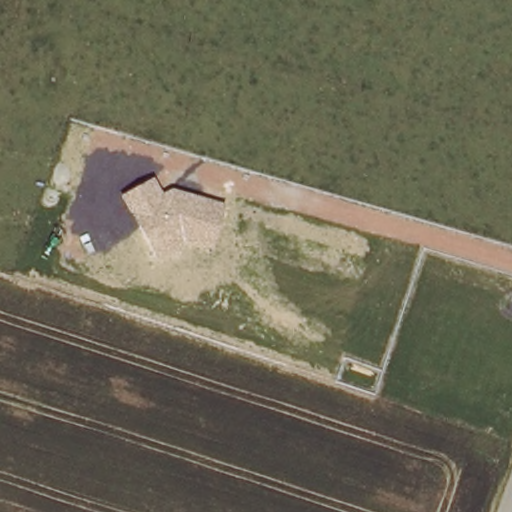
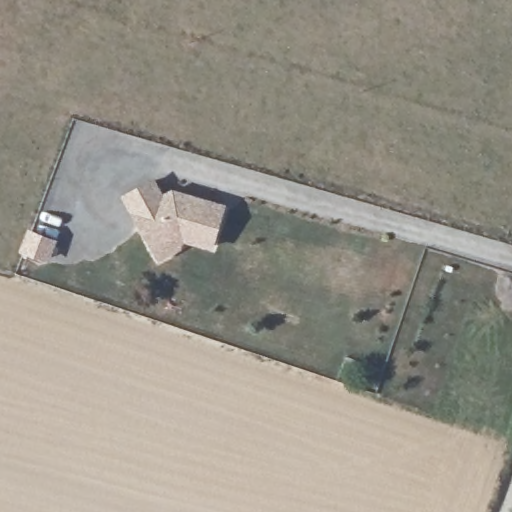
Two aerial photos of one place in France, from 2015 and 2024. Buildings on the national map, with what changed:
unchanged [(156,177),(163,193),(170,187),(225,203),(213,247),(187,242),(158,258),(121,195),(156,177)]
new [(31,233),(54,241),(47,260),(25,251),(31,233)]

